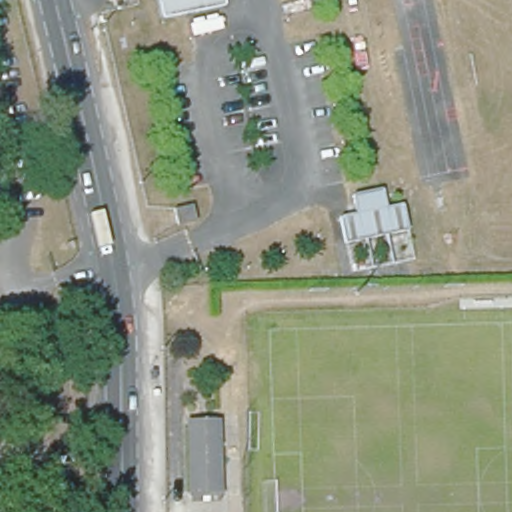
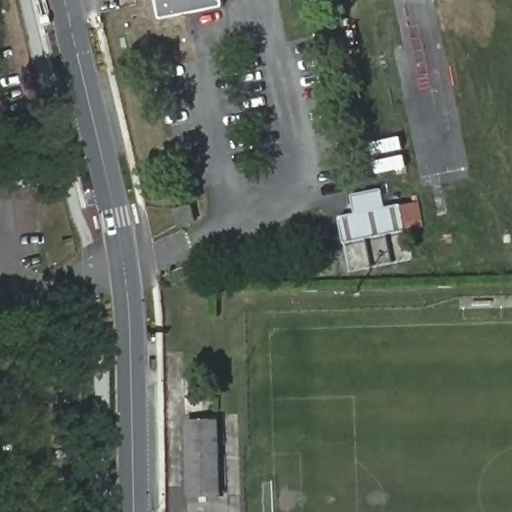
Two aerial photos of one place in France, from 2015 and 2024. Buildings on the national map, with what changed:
unchanged [(220,2),(214,3),(165,12),(162,13),(161,12),(160,10),(158,0),(221,0),(220,2)]
unchanged [(358,237),(345,239),(340,215),(341,213),(342,211),(348,210),(356,208),(354,194),(354,192),(355,190),(358,189),(379,184),(382,184),(384,186),(388,201),(399,199),(401,199),(402,200),(404,203),(409,225),(396,228),(388,230),(376,233),(367,235),(358,237)]
unchanged [(170,216),(169,213),(190,209),(194,225),(185,227),(173,230),(170,216)]
unchanged [(185,425),(211,424),(213,501),(186,501),(185,425)]

